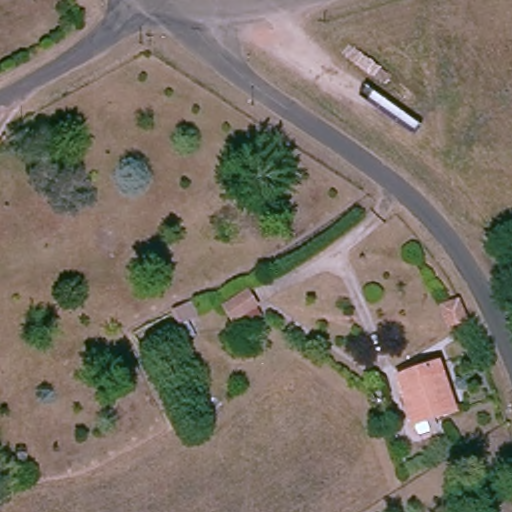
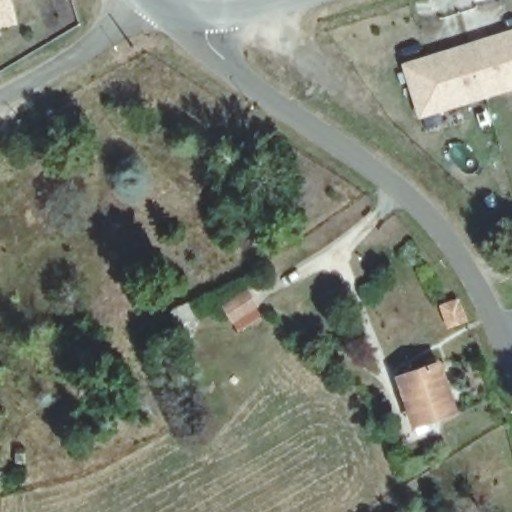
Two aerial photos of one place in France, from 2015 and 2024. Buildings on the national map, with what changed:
new [(8,0),(13,24),(0,27),(0,0),(8,0)]
new [(402,65),(512,31),(512,90),(418,119),(402,65)]
demolished [(301,295),(326,343),(278,369),(253,322),(301,295)]
unchanged [(462,341),(446,309),(461,302),(477,335),(462,341)]
demolished [(446,344),(429,313),(445,305),(460,339),(446,344)]
unchanged [(177,328),(191,358),(146,383),(131,353),(177,328)]
unchanged [(432,361),(449,408),(411,422),(395,374),(432,361)]

